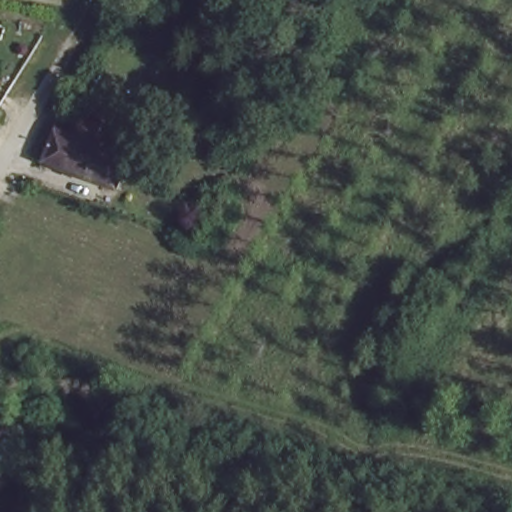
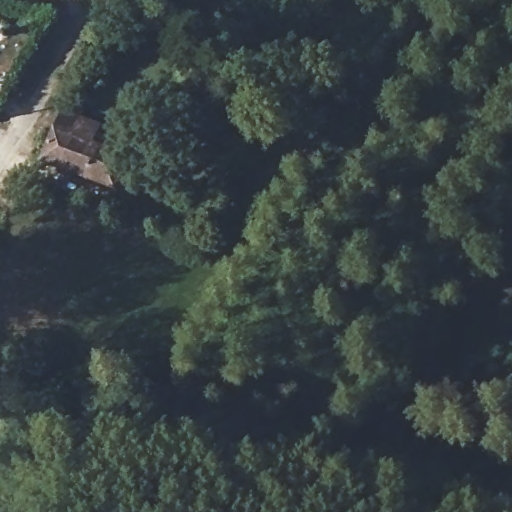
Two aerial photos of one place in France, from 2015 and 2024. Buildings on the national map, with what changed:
unchanged [(50,139),(57,112),(106,128),(99,152),(50,139)]
unchanged [(99,152),(123,159),(117,187),(41,168),(50,139),(99,152)]

